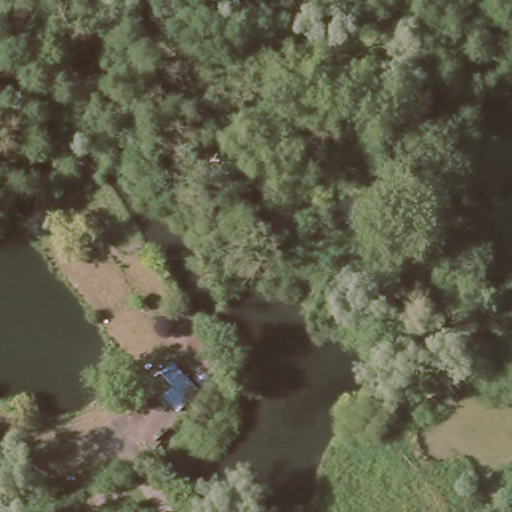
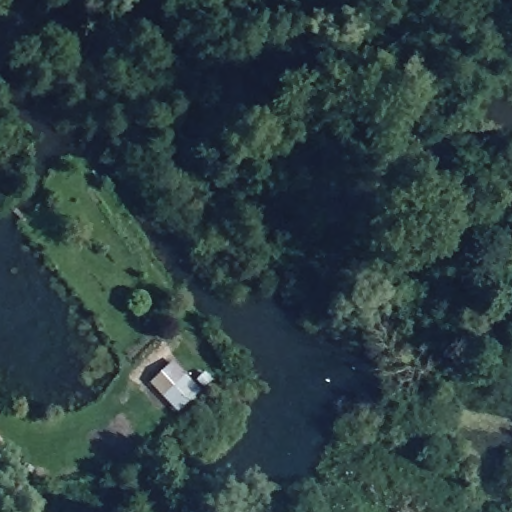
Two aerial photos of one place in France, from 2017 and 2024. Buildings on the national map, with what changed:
unchanged [(195,392),(165,412),(142,381),(169,363),(195,392)]

